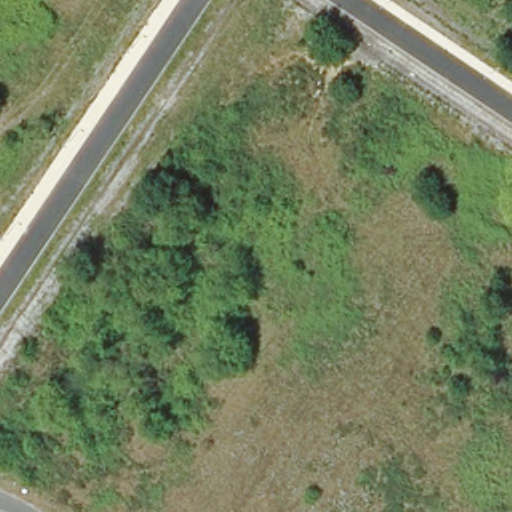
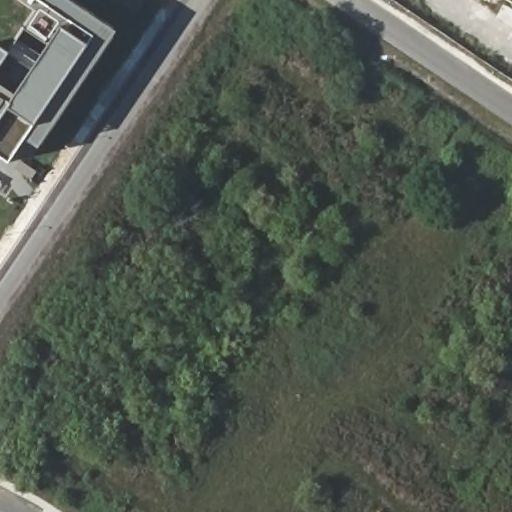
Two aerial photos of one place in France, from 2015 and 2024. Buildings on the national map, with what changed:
new [(23,138),(7,163),(0,158),(0,0),(38,0),(91,36),(23,138)]
new [(37,148),(23,138),(91,36),(38,0),(68,0),(115,32),(37,148)]
new [(506,0),(512,0),(512,4),(506,0)]

